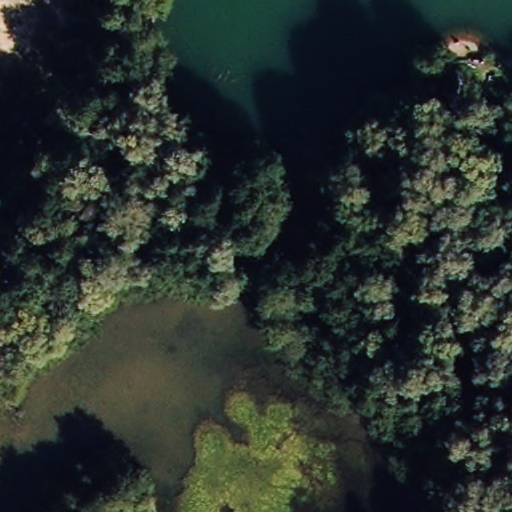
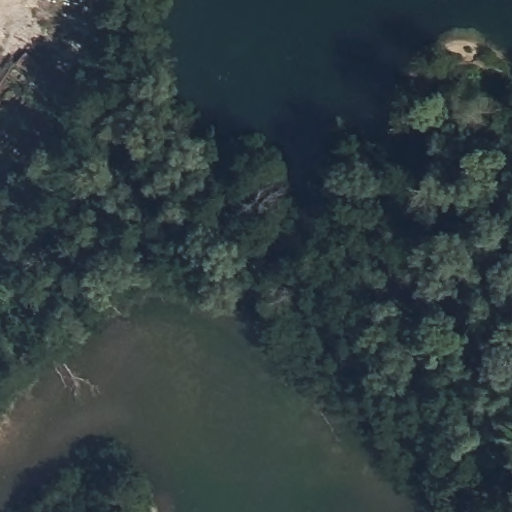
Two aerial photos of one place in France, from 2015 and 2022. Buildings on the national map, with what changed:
unchanged [(80,99),(67,94),(78,56),(91,60),(80,99)]

